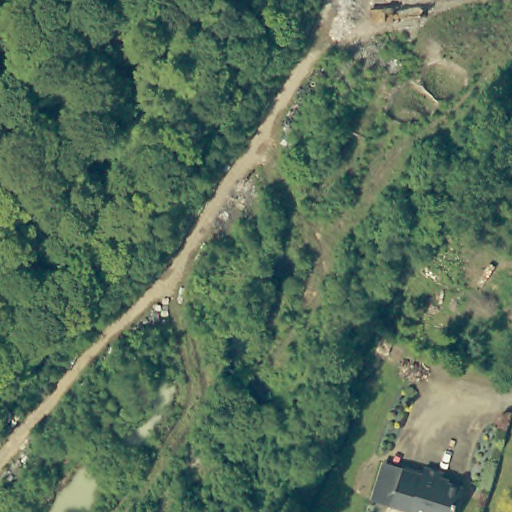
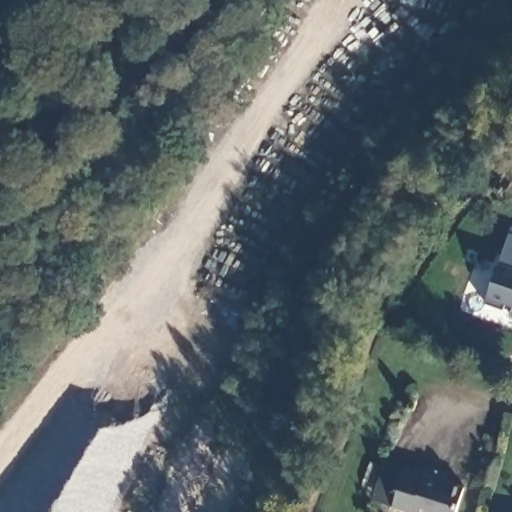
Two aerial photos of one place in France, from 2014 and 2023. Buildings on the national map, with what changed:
new [(503,310),(484,303),(508,234),(512,235),(512,304),(506,302),(503,310)]
unchanged [(443,470),(440,480),(462,486),(455,512),(427,512),(395,503),(404,469),(422,474),(425,465),(443,470)]

